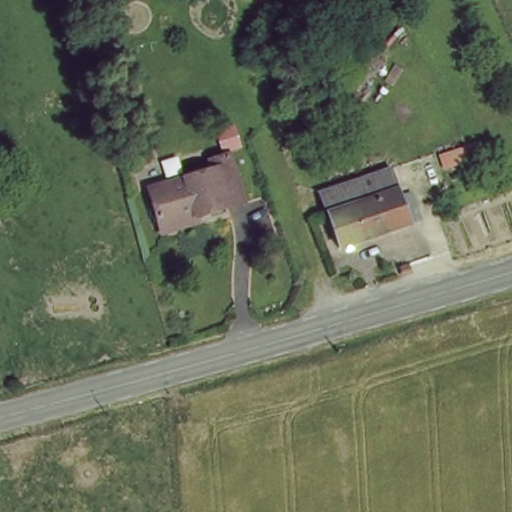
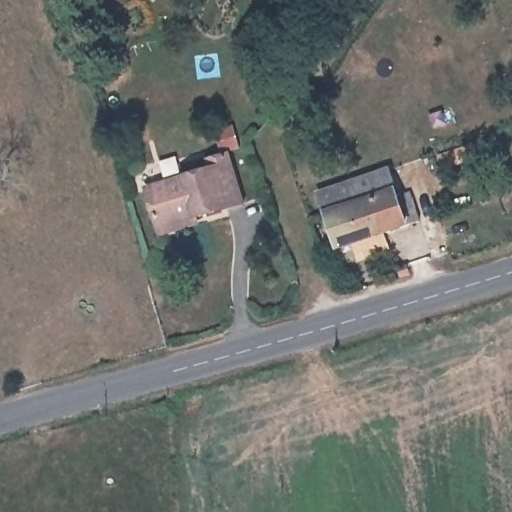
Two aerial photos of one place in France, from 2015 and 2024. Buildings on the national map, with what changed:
unchanged [(170,232),(159,195),(219,176),(216,165),(233,160),(245,210),(170,232)]
unchanged [(327,209),(322,189),(388,167),(395,187),(327,209)]
unchanged [(397,192),(410,190),(422,220),(340,247),(325,210),(327,209),(395,187),(397,192)]

